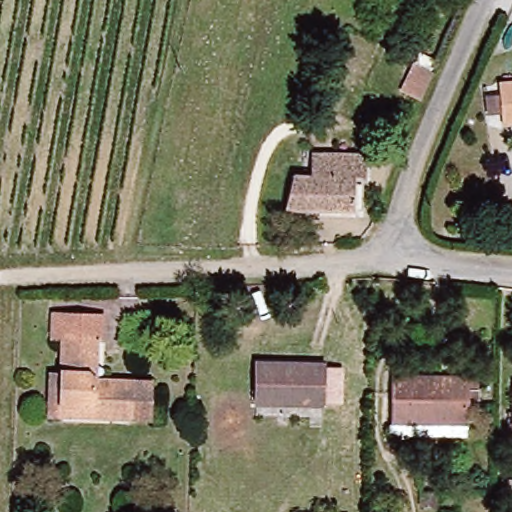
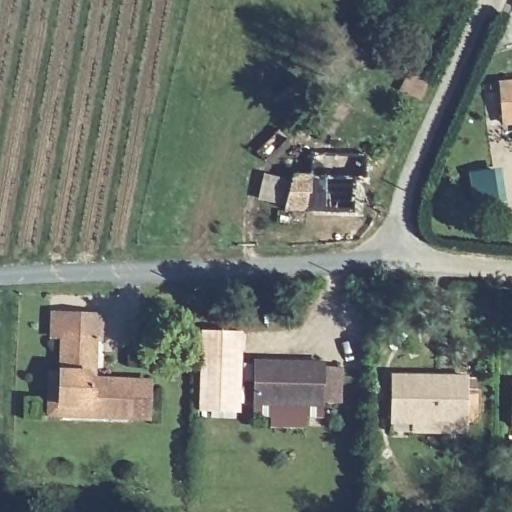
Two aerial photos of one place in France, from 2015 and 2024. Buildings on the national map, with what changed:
unchanged [(413,70),(431,78),(419,105),(401,97),(413,70)]
unchanged [(512,117),(501,118),(498,80),(512,79),(512,117)]
unchanged [(364,180),(354,180),(352,213),(284,210),(292,175),(309,177),(310,154),(365,155),(364,180)]
unchanged [(130,413),(91,412),(48,410),(50,368),(61,368),(62,333),(51,332),(52,310),(101,312),(100,334),(95,334),(93,375),(131,377),(149,378),(148,414),(130,413)]
new [(197,330),(243,331),(240,414),(237,414),(237,417),(196,414),(197,330)]
unchanged [(322,364),(320,406),(255,404),(255,363),(322,364)]
unchanged [(465,379),(472,379),(472,390),(475,390),(474,424),(464,423),(464,436),(389,434),(390,378),(465,379)]

